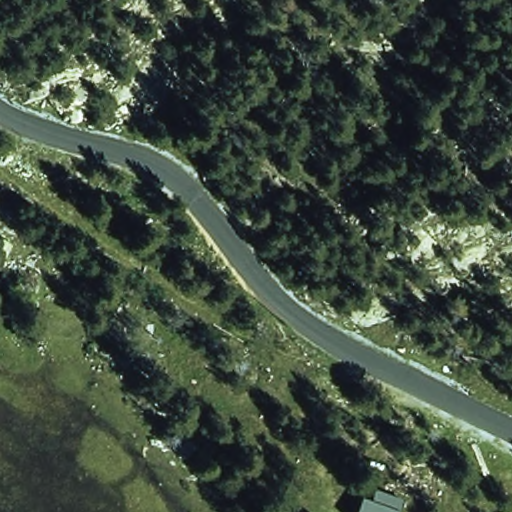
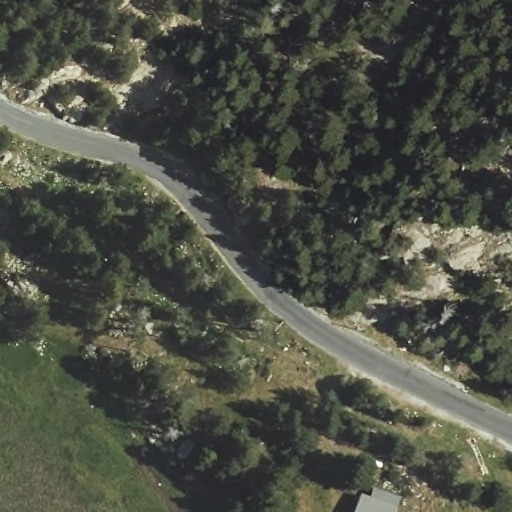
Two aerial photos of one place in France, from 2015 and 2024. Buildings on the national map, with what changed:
unchanged [(399,512),(355,512),(362,492),(402,503),(399,512)]

